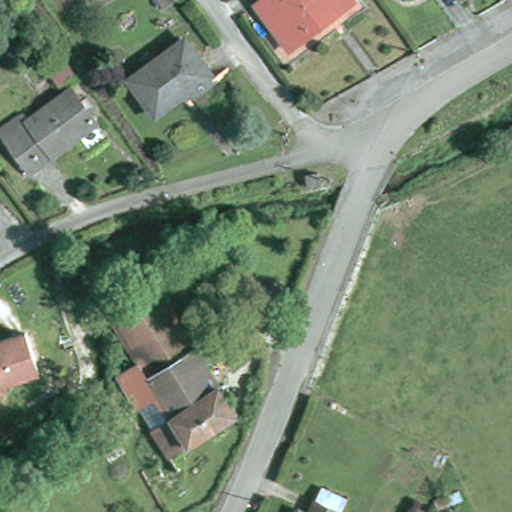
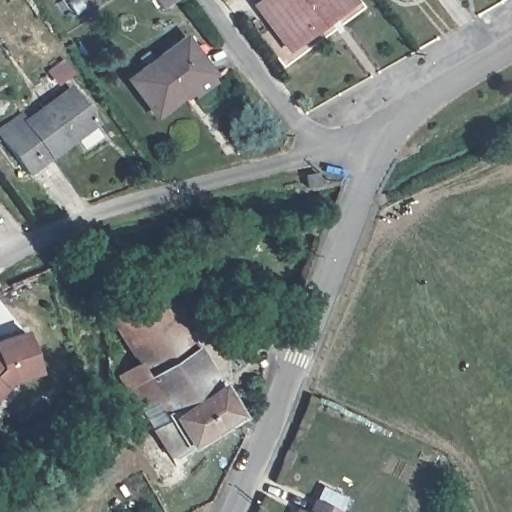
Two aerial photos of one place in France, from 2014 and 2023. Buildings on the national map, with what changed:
unchanged [(168,0),(157,8),(152,0),(168,0)]
unchanged [(262,8),(272,0),(358,0),(360,4),(342,18),(295,53),(292,48),(262,8)]
unchanged [(187,99),(162,117),(136,83),(191,43),(216,78),(222,86),(192,106),(187,99)]
unchanged [(4,131),(28,113),(35,121),(79,88),(105,124),(37,175),(4,131)]
unchanged [(314,172),(316,184),(304,186),(301,175),(314,172)]
unchanged [(120,374),(140,362),(114,319),(162,290),(237,414),(170,454),(120,374)]
unchanged [(24,329),(37,370),(9,379),(0,390),(0,337),(24,329)]
unchanged [(322,499),(347,511),(347,512),(316,512),(322,499)]
unchanged [(305,508),(314,512),(303,512),(305,508)]

